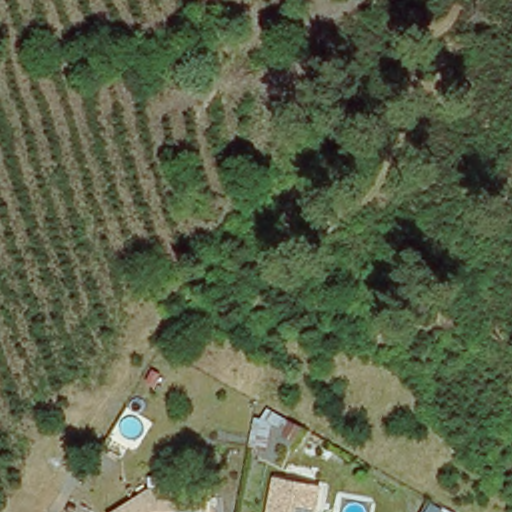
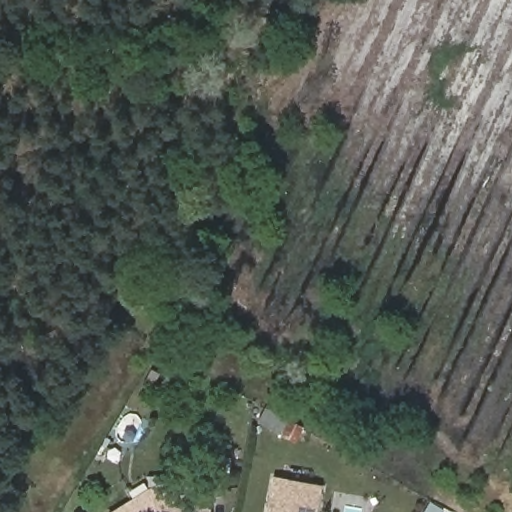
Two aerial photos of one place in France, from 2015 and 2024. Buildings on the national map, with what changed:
unchanged [(326,512),(274,512),(277,478),(328,482),(326,512)]
unchanged [(210,512),(111,512),(151,488),(209,487),(210,512)]

